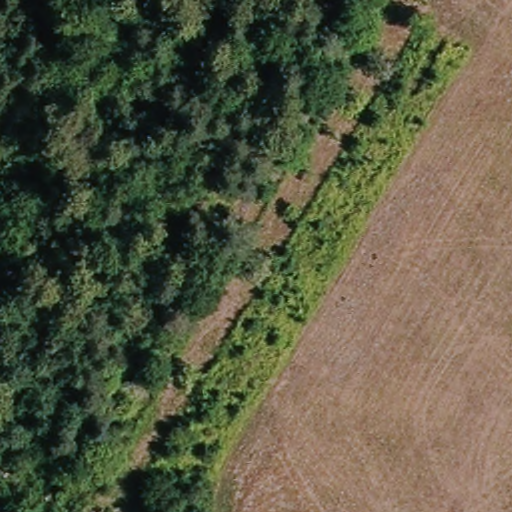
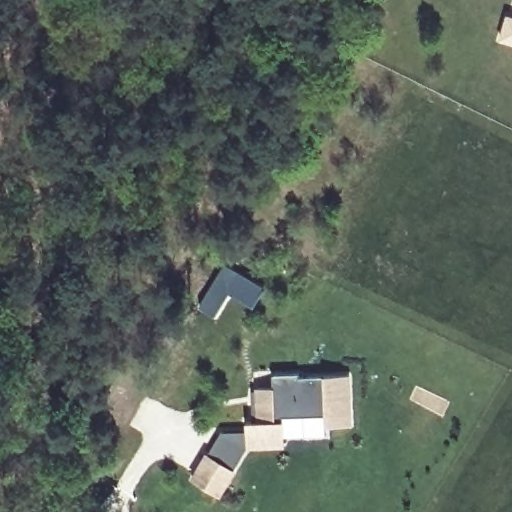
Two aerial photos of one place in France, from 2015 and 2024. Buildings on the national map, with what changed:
new [(504,13),(512,15),(512,45),(496,40),(504,13)]
new [(249,432),(249,423),(255,422),(254,391),(260,391),(259,389),(275,388),(275,375),(300,374),(300,377),(350,375),(353,424),(329,425),(328,418),(285,420),(286,445),(250,447),(236,470),(221,495),(195,480),(210,454),(222,433),(249,432)]

